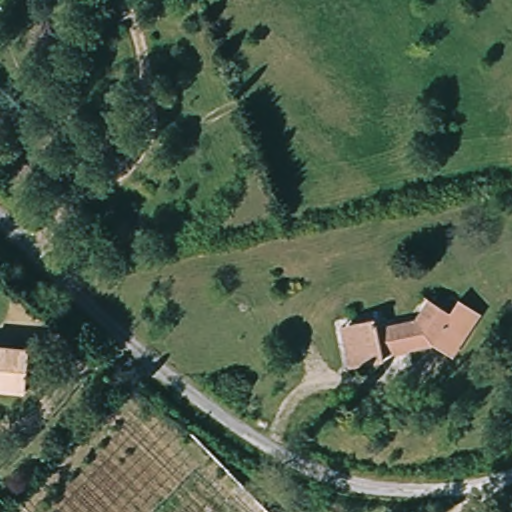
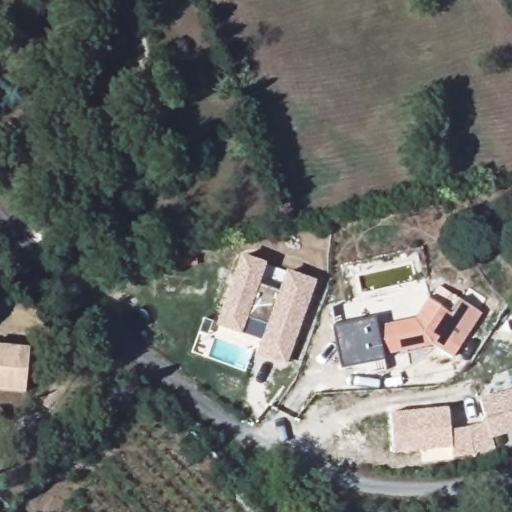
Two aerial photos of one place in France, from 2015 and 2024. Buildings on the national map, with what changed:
new [(247,319),(241,336),(216,327),(240,255),(267,264),(260,287),(278,293),(286,271),(317,282),(286,367),(256,356),(267,327),(247,319)]
unchanged [(426,349),(378,357),(380,363),(353,367),(348,325),(371,322),(372,328),(420,319),(430,306),(450,319),(462,305),(480,318),(448,364),(426,349)]
unchanged [(0,394),(0,345),(35,350),(29,398),(0,394)]
new [(486,422),(480,401),(512,391),(512,432),(492,439),(495,448),(475,455),(452,459),(451,447),(450,431),(466,429),(486,422)]
new [(451,447),(395,455),(390,416),(449,410),(450,431),(451,447)]

